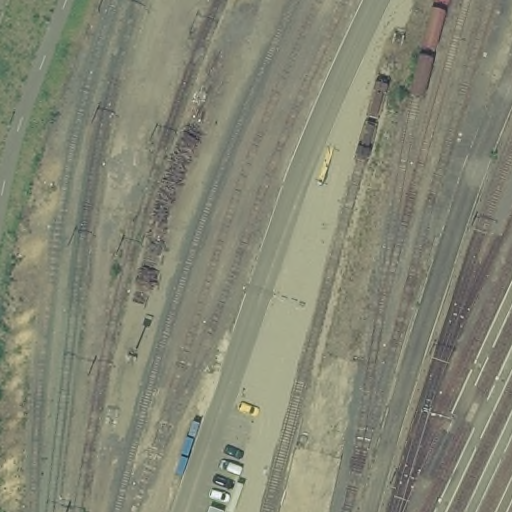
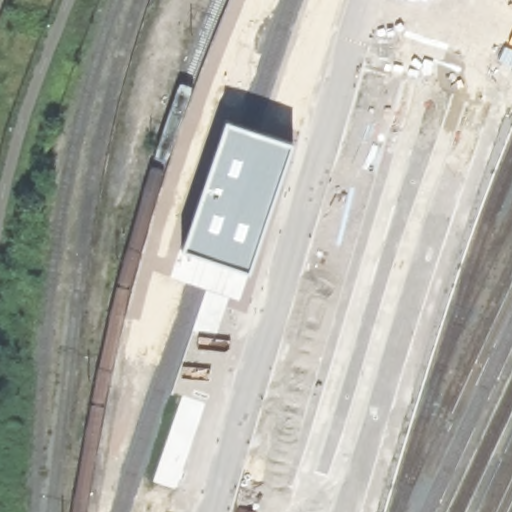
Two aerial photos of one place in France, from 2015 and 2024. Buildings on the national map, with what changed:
new [(225,119),(293,142),(238,301),(186,283),(188,277),(190,278),(193,270),(208,274),(209,268),(198,263),(199,260),(179,252),(225,119)]

